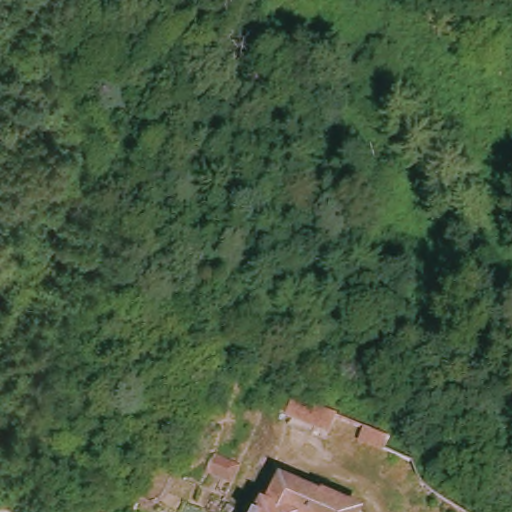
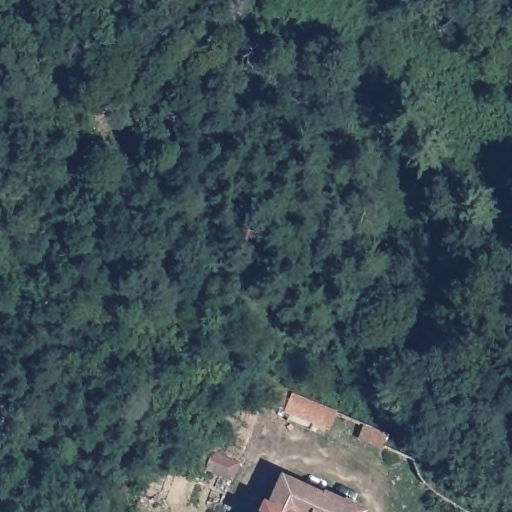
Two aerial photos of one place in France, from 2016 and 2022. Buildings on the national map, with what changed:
unchanged [(285,415),(292,396),(334,414),(328,431),(285,415)]
unchanged [(191,482),(200,463),(228,474),(220,494),(191,482)]
unchanged [(260,504),(268,507),(278,475),(304,483),(303,488),(320,493),(322,485),(365,499),(362,512),(258,512),(260,504)]

